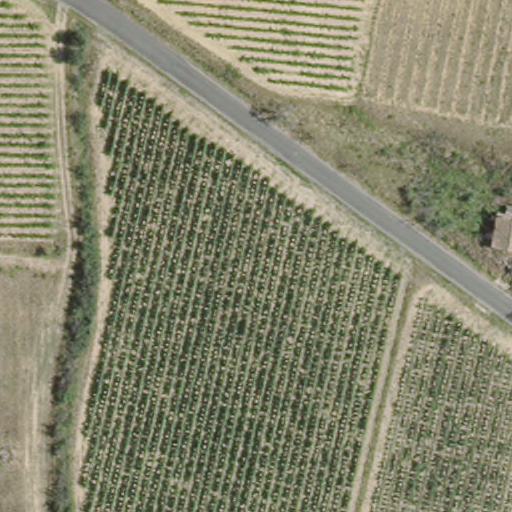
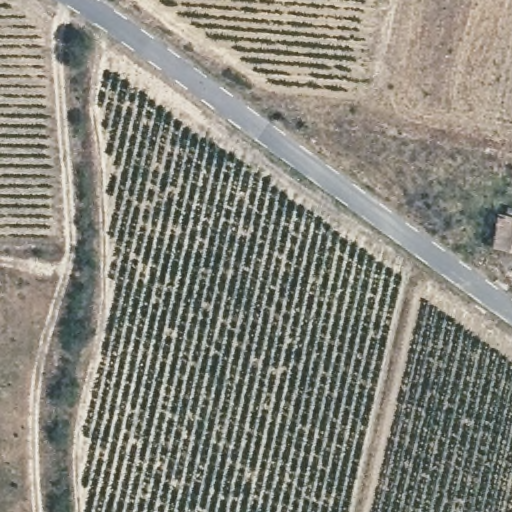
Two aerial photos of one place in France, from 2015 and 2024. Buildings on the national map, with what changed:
unchanged [(505,246),(486,243),(492,206),(511,209),(512,209),(512,248),(505,246)]

